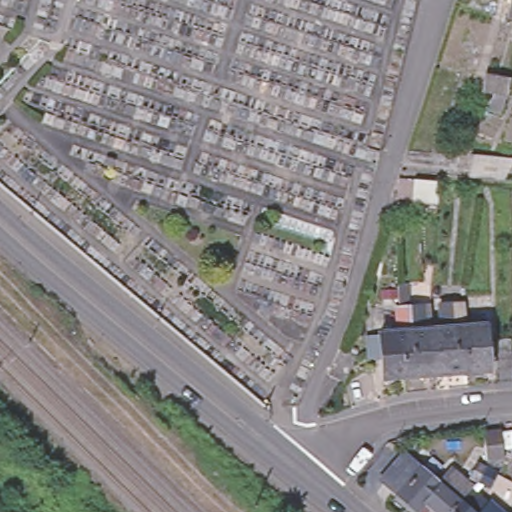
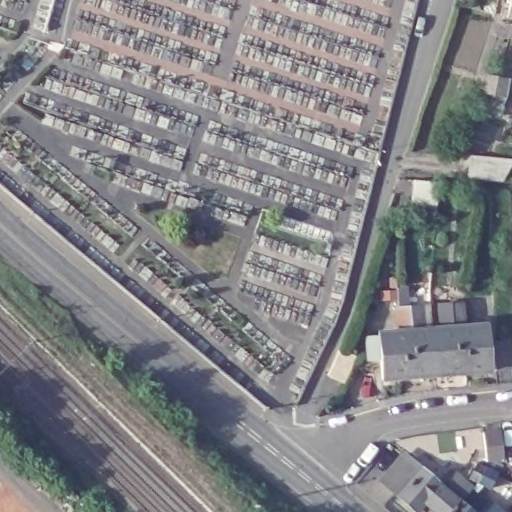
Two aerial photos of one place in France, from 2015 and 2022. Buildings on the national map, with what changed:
unchanged [(506,0),(512,0),(512,10),(504,9),(506,0)]
unchanged [(511,80),(507,97),(494,95),(483,93),(487,75),(499,77),(511,80)]
unchanged [(469,179),(471,156),(512,160),(512,169),(504,182),(469,179)]
unchanged [(438,185),(438,203),(413,201),(414,183),(438,185)]
unchanged [(441,331),(440,324),(437,323),(436,305),(447,304),(458,304),(462,322),(459,323),(459,329),(484,328),(487,372),(464,373),(433,376),(430,331),(441,331)]
unchanged [(399,334),(398,326),(396,326),(395,309),(407,308),(419,307),(419,324),(417,324),(418,332),(430,331),(433,376),(403,379),(379,381),(377,335),(399,334)]
unchanged [(512,369),(495,370),(493,343),(510,341),(512,363),(512,369)]
unchanged [(358,357),(346,383),(329,374),(342,350),(358,357)]
unchanged [(474,431),(491,429),(494,457),(477,458),(474,431)]
unchanged [(475,500),(485,508),(490,512),(429,512),(422,506),(418,511),(413,506),(409,510),(389,492),(374,479),(398,452),(413,465),(430,480),(441,466),(463,485),(451,499),(465,510),(475,500)]
unchanged [(478,484),(469,478),(461,473),(468,460),(478,465),(487,469),(478,484)]

